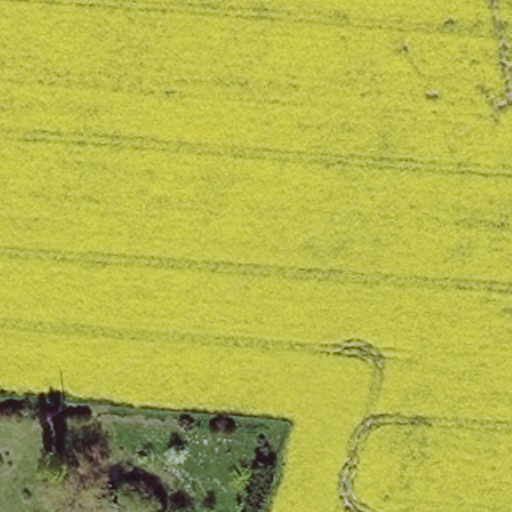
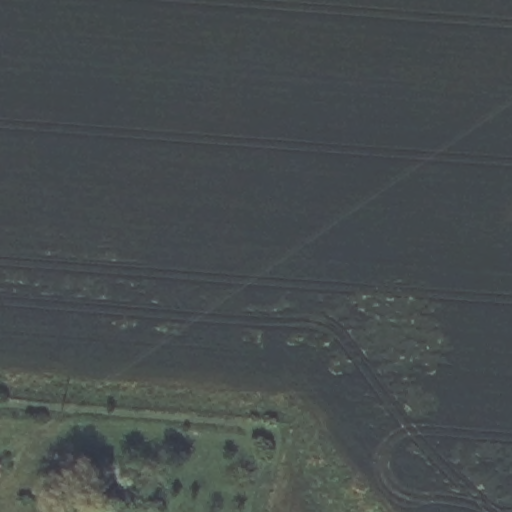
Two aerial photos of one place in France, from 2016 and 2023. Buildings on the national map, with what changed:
[]

